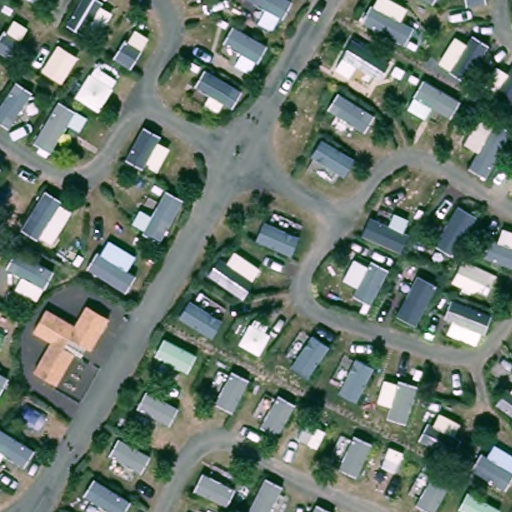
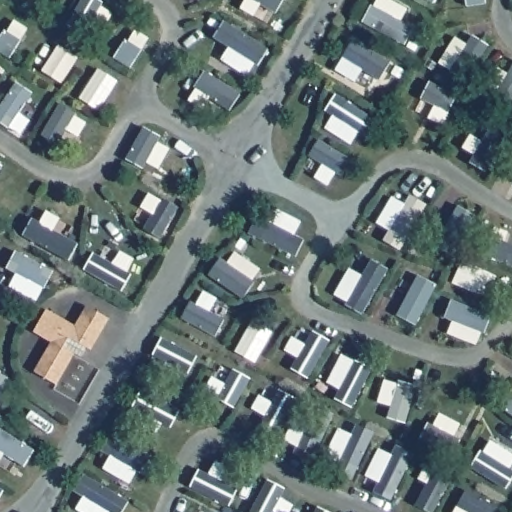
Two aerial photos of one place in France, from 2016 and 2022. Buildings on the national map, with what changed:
unchanged [(77,321),(87,302),(111,317),(95,346),(77,354),(61,383),(35,369),(52,339),(34,329),(47,308),(77,321)]

